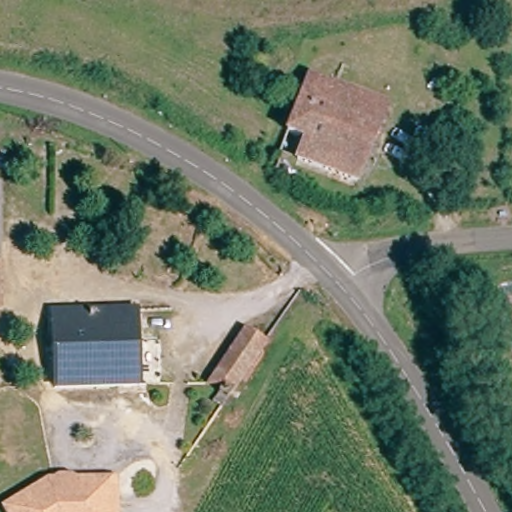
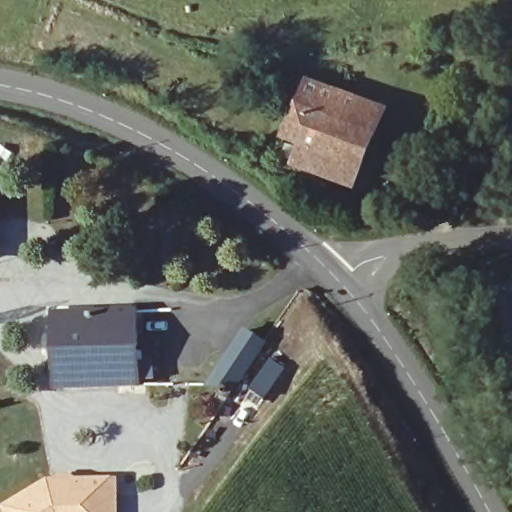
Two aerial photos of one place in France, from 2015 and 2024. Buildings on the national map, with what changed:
unchanged [(296,125),(309,91),(341,100),(351,75),(383,85),(396,89),(359,188),(284,159),(296,125)]
unchanged [(53,387),(52,312),(135,312),(133,385),(53,387)]
unchanged [(228,397),(219,390),(221,386),(218,383),(210,374),(246,328),(265,343),(228,397)]
unchanged [(127,498),(105,500),(106,512),(20,512),(60,487),(127,484),(127,498)]

